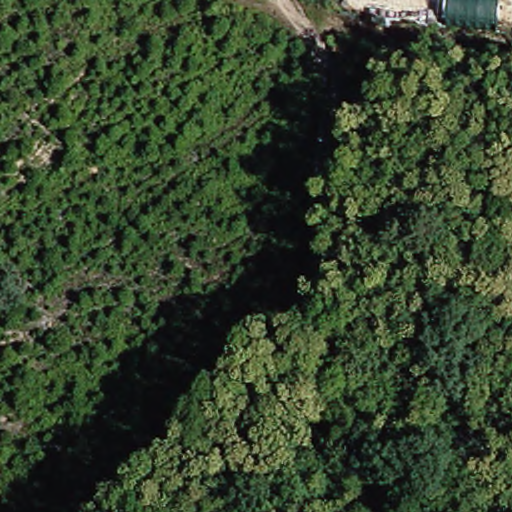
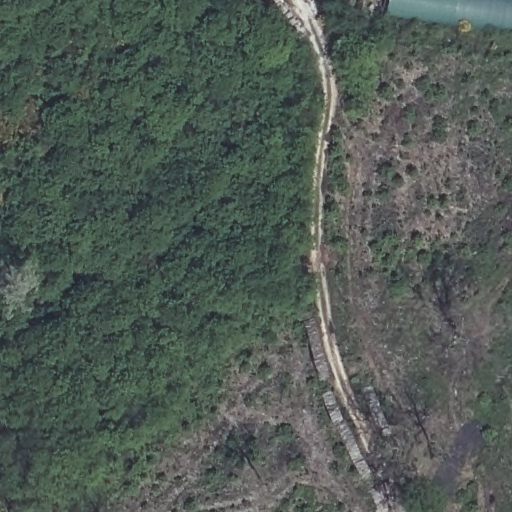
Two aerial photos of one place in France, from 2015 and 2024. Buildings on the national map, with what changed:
new [(383,16),(385,0),(512,0),(512,33),(383,16)]

